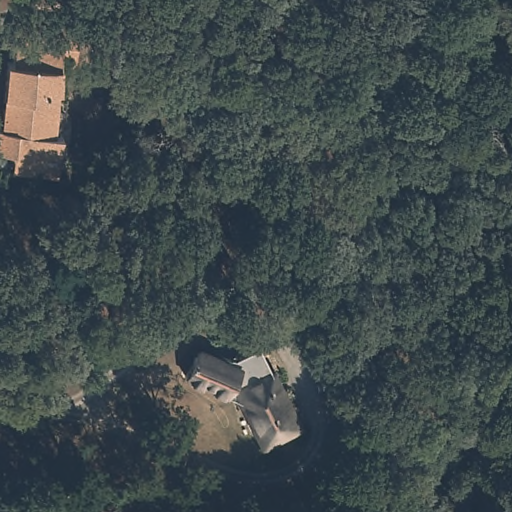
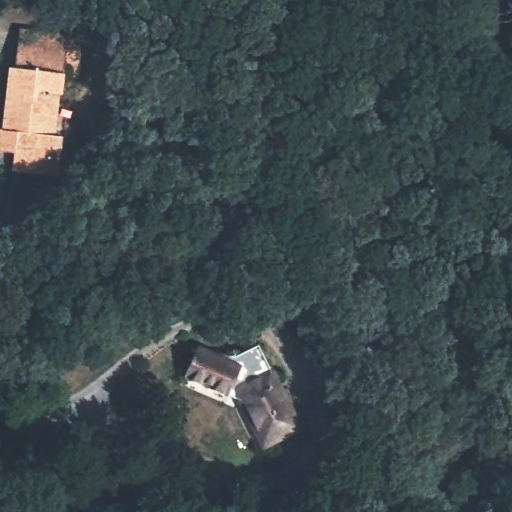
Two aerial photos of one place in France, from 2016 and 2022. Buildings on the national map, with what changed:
unchanged [(34,25),(97,33),(95,54),(30,48),(34,25)]
unchanged [(27,173),(28,161),(28,155),(4,153),(7,131),(15,131),(22,69),(29,70),(30,48),(95,54),(92,74),(79,72),(75,97),(73,97),(69,138),(76,138),(75,158),(73,175),(27,173)]
unchanged [(307,427),(270,446),(245,400),(186,382),(195,352),(225,361),(261,342),(307,427)]

